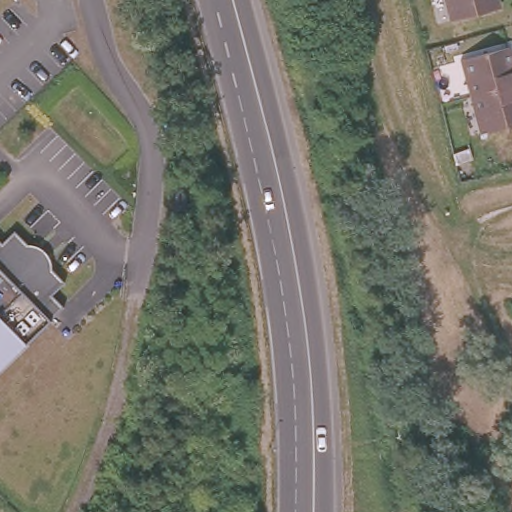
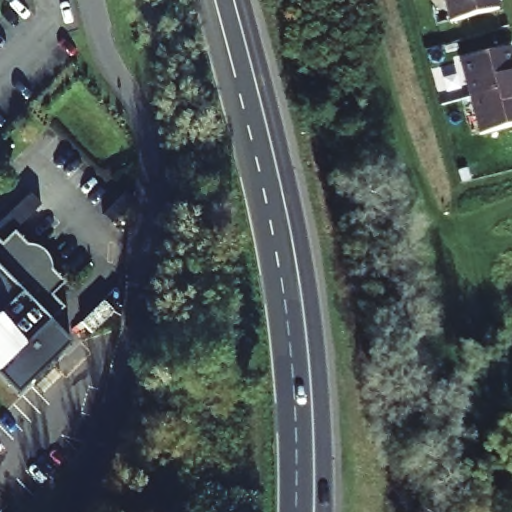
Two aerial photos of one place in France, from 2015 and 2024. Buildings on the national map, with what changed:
unchanged [(491,12),(447,24),(440,0),(488,0),(491,12)]
unchanged [(456,59),(498,47),(505,73),(512,71),(512,90),(467,101),(456,59)]
unchanged [(467,101),(512,90),(512,131),(477,141),(467,101)]
unchanged [(187,192),(186,211),(175,210),(176,191),(187,192)]
unchanged [(1,243),(15,230),(29,242),(36,242),(41,245),(45,247),(47,249),(51,254),(54,260),(54,265),(69,278),(51,295),(63,306),(0,369),(0,241),(1,243)]

